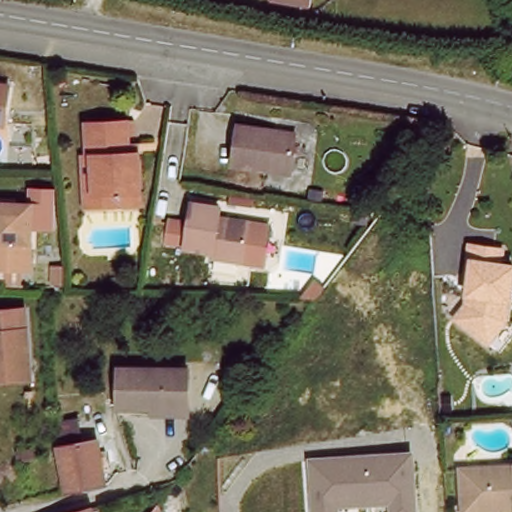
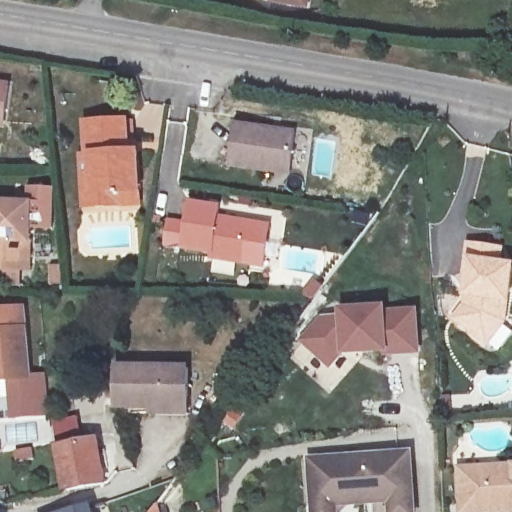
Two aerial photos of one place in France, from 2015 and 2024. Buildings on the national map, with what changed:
unchanged [(300,14),(290,11),(266,4),(264,0),(304,0),(300,14)]
unchanged [(6,120),(0,120),(0,76),(7,76),(6,120)]
unchanged [(126,209),(100,211),(86,212),(80,154),(88,152),(85,111),(128,107),(131,145),(140,143),(146,190),(147,206),(126,209)]
unchanged [(293,173),(231,163),(238,119),(300,129),(293,173)]
unchanged [(57,232),(35,232),(35,201),(36,199),(36,191),(57,192),(57,232)]
unchanged [(255,260),(178,249),(184,191),(211,194),(211,209),(261,216),(255,260)]
unchanged [(0,269),(0,199),(35,201),(33,270),(0,269)]
unchanged [(463,326),(473,315),(473,303),(472,285),(468,285),(466,254),(498,251),(499,267),(512,266),(512,326),(491,351),(467,330),(465,328),(463,326)]
unchanged [(0,378),(0,307),(25,305),(31,376),(0,378)]
new [(391,356),(343,357),(343,355),(331,369),(301,342),(324,316),(341,314),(340,308),(390,307),(390,310),(420,309),(421,354),(391,356)]
unchanged [(153,411),(115,411),(115,363),(188,363),(189,398),(190,411),(153,411)]
unchanged [(79,413),(84,436),(100,435),(109,483),(65,490),(56,441),(53,418),(79,413)]
unchanged [(340,506),(340,512),(310,512),(308,458),(414,451),(417,512),(387,512),(387,505),(340,506)]
unchanged [(461,471),(487,469),(512,467),(512,508),(508,508),(508,512),(464,512),(463,506),(461,471)]
unchanged [(163,512),(151,512),(160,500),(163,512)]
unchanged [(98,512),(62,512),(95,502),(98,512)]

